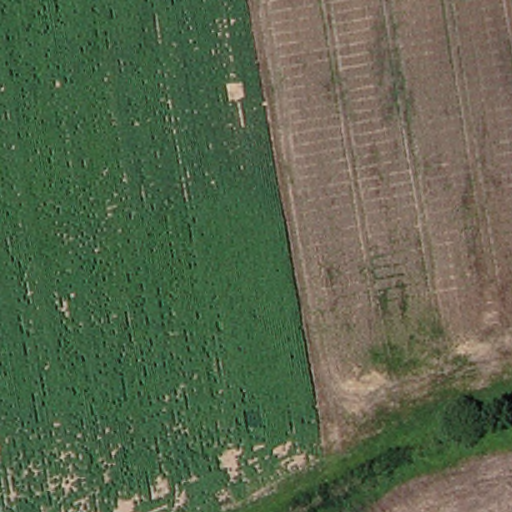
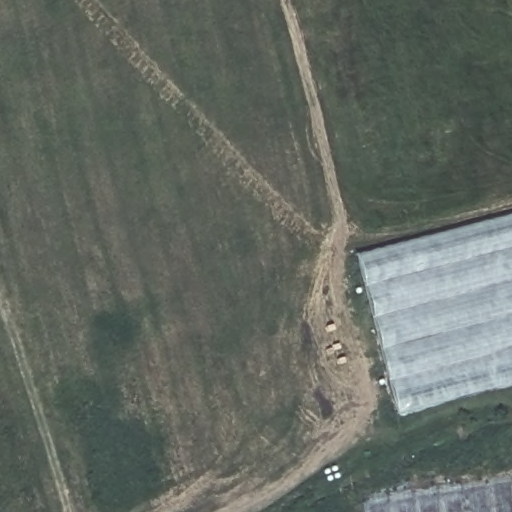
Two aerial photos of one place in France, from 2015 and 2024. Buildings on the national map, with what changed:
new [(355,255),(512,214),(512,383),(397,413),(355,255)]
new [(368,512),(366,503),(512,481),(512,512),(368,512)]

